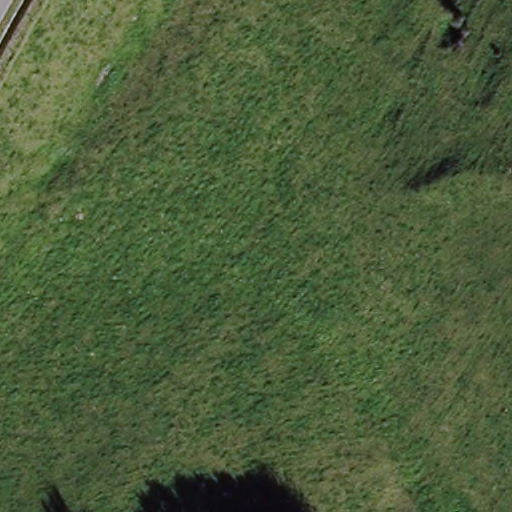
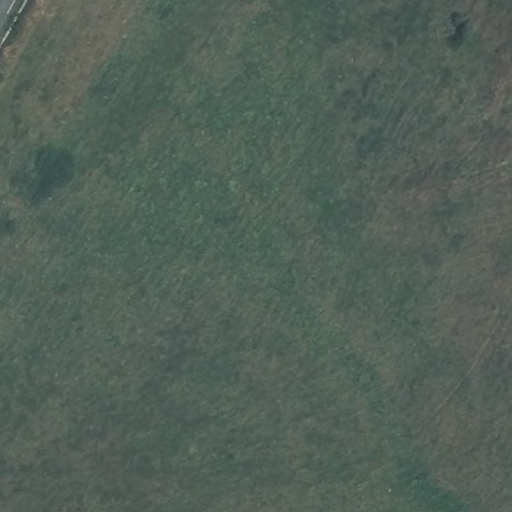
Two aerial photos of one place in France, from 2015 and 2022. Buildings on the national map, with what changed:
[]

